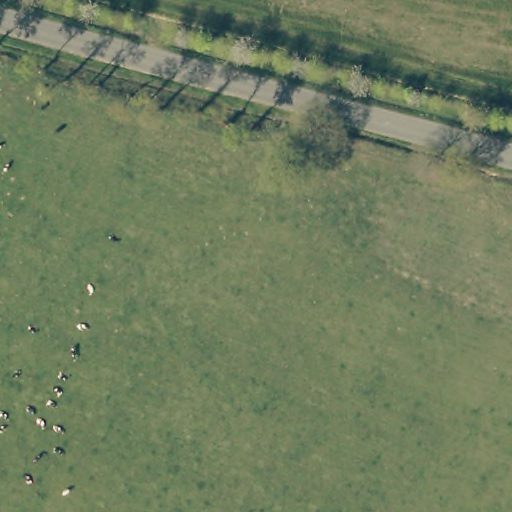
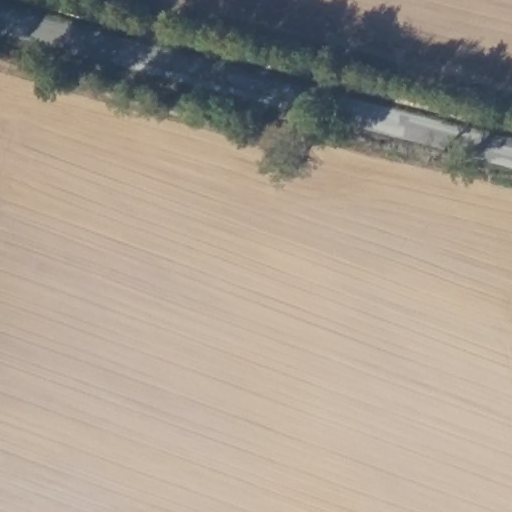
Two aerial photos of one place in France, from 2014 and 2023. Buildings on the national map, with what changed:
[]

